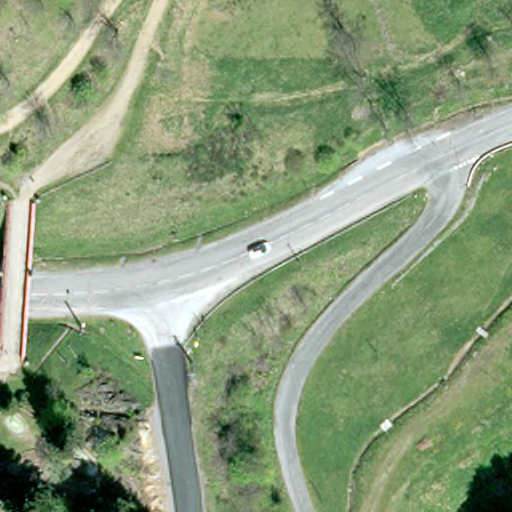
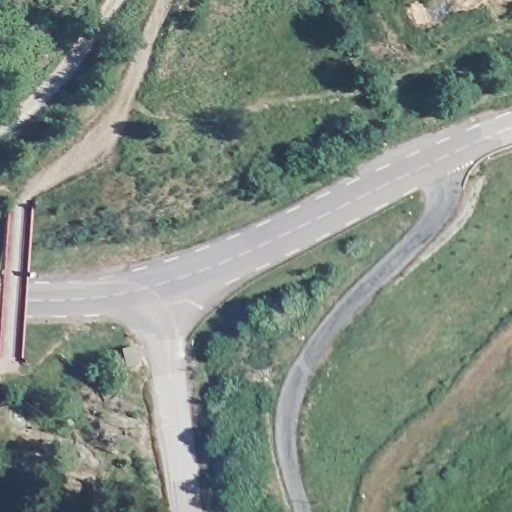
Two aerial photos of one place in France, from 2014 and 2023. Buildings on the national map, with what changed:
[]

